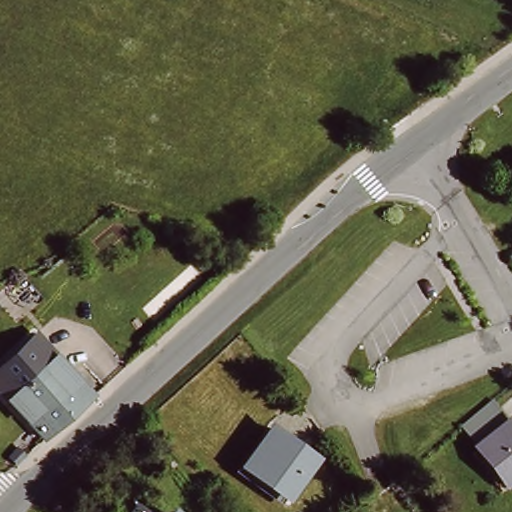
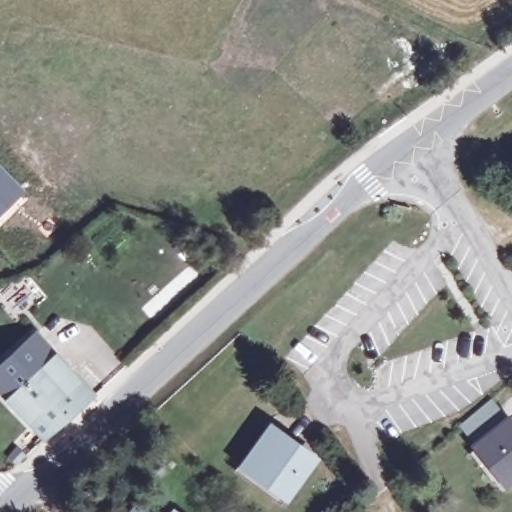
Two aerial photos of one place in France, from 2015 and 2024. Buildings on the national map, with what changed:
new [(27,191),(0,217),(0,164),(27,191)]
unchanged [(0,392),(0,360),(25,337),(30,341),(35,336),(93,397),(45,440),(0,392)]
unchanged [(455,426),(489,400),(503,419),(468,445),(455,426)]
unchanged [(503,419),(509,414),(512,417),(512,485),(504,490),(468,445),(503,419)]
unchanged [(313,460),(286,497),(245,467),(272,430),(313,460)]
unchanged [(19,448),(27,456),(17,466),(10,459),(19,448)]
unchanged [(179,512),(168,512),(172,507),(179,512)]

